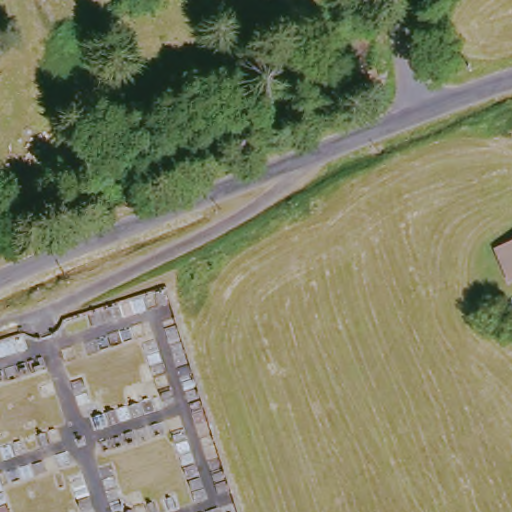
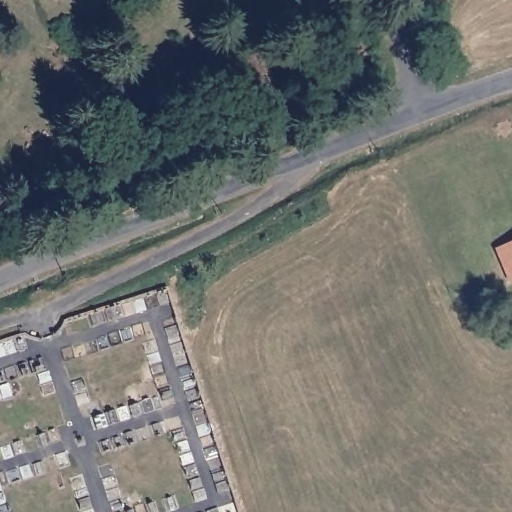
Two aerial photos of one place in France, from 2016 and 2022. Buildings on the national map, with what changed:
unchanged [(510,246),(512,245),(512,252),(510,246)]

